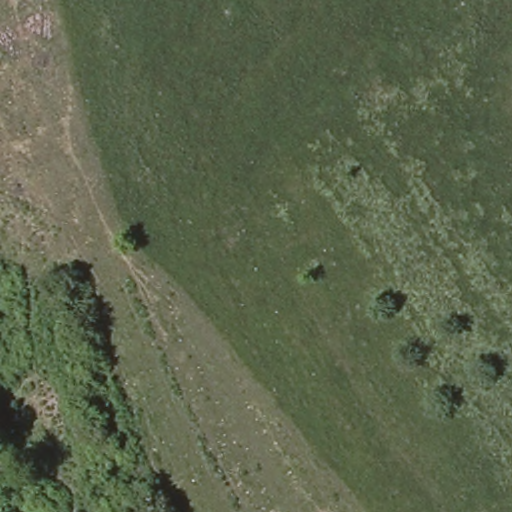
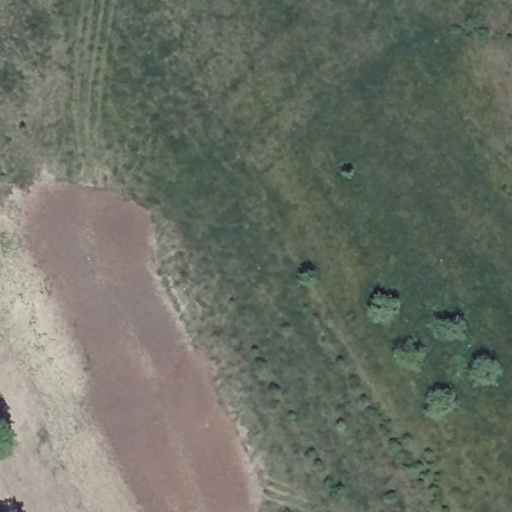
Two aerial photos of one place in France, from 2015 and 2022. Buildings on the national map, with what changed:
[]

